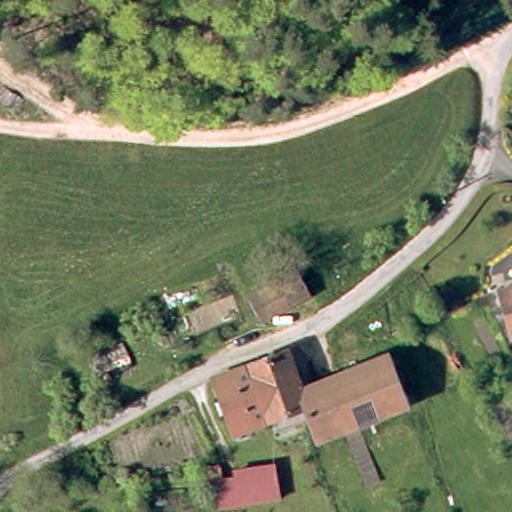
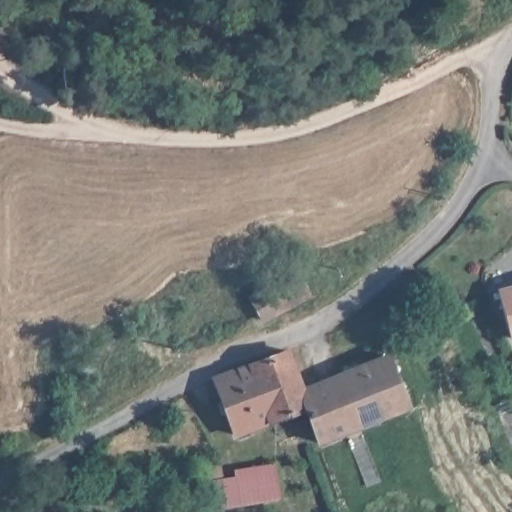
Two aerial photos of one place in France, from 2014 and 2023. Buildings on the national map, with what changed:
unchanged [(301,270),(310,293),(259,323),(251,304),(301,270)]
unchanged [(495,283),(512,278),(512,331),(510,332),(495,283)]
unchanged [(298,368),(258,382),(250,354),(289,339),(298,368)]
unchanged [(311,416),(308,401),(303,385),(347,369),(390,353),(404,348),(423,400),(415,403),(410,405),(319,440),(311,416)]
unchanged [(227,428),(212,368),(250,354),(258,382),(268,414),(227,428)]
unchanged [(308,401),(297,404),(268,415),(268,414),(258,382),(298,368),(303,385),(308,401)]
unchanged [(205,482),(203,467),(224,466),(225,480),(239,480),(239,475),(256,473),(277,472),(278,502),(259,504),(240,505),(218,506),(217,481),(205,482)]

